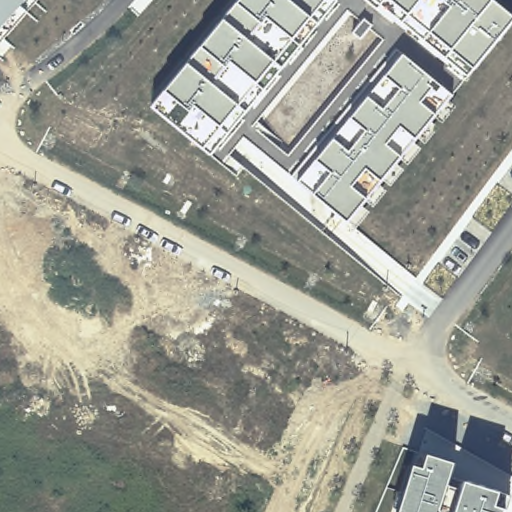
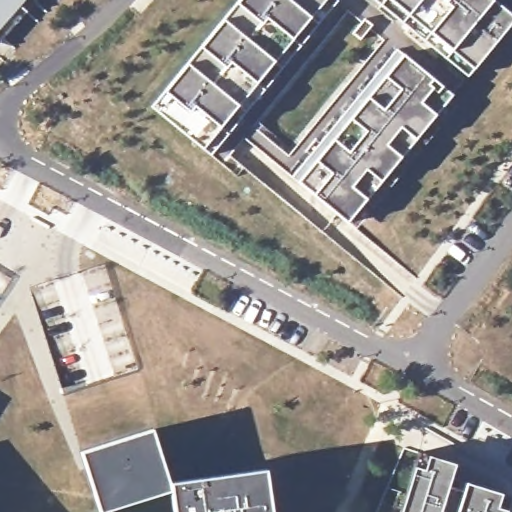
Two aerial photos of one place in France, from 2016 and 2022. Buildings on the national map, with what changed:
unchanged [(0,0),(35,0),(0,40),(0,0)]
unchanged [(210,152),(204,148),(153,105),(165,89),(239,0),(335,0),(210,152)]
unchanged [(472,68),(466,75),(375,0),(494,0),(512,14),(512,20),(472,68)]
unchanged [(434,113),(415,138),(400,155),(379,180),(365,198),(348,220),(314,195),(298,183),(314,163),(334,139),(350,119),(368,97),(384,77),(402,52),(441,85),(452,94),(434,113)]
new [(152,429),(169,481),(264,469),(271,512),(173,512),(169,490),(106,509),(109,512),(99,512),(79,452),(152,429)]
unchanged [(504,507),(503,512),(398,512),(413,464),(423,467),(428,454),(455,463),(449,478),(466,481),(498,491),(509,494),(504,507)]
new [(169,490),(173,512),(109,512),(106,509),(169,490)]

